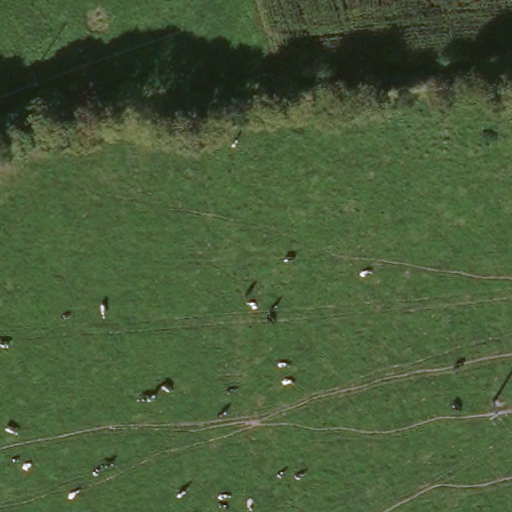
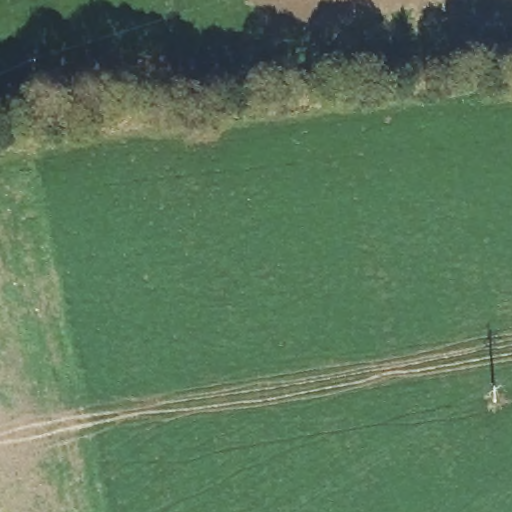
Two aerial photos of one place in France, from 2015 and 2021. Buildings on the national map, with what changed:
[]

